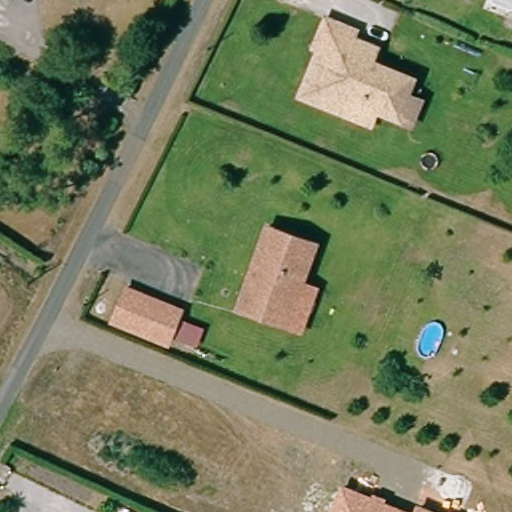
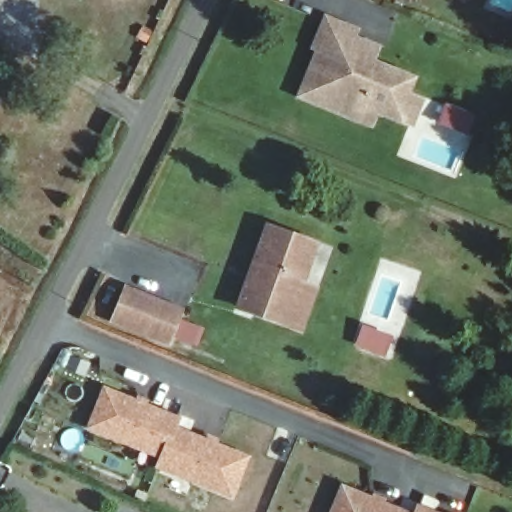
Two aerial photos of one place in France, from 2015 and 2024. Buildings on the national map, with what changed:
unchanged [(301,92),(311,67),(314,59),(320,46),(315,44),(327,14),(341,20),(358,27),(355,34),(380,44),(374,58),(416,75),(410,92),(423,97),(413,121),(401,117),(379,108),(373,122),(350,112),(301,92)]
unchanged [(283,322),(235,305),(255,246),(263,223),(312,241),(303,266),(298,281),(313,287),(300,327),(283,322)]
unchanged [(137,334),(110,323),(122,289),(150,300),(137,334)]
unchanged [(165,346),(137,334),(150,300),(179,311),(165,346)]
new [(156,468),(160,460),(86,429),(103,387),(180,418),(177,426),(250,457),(232,498),(156,468)]

